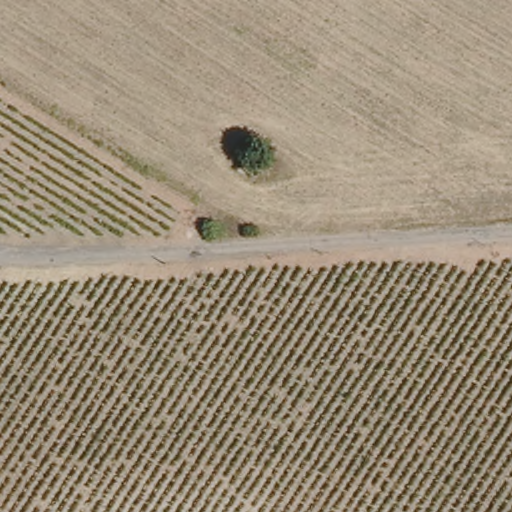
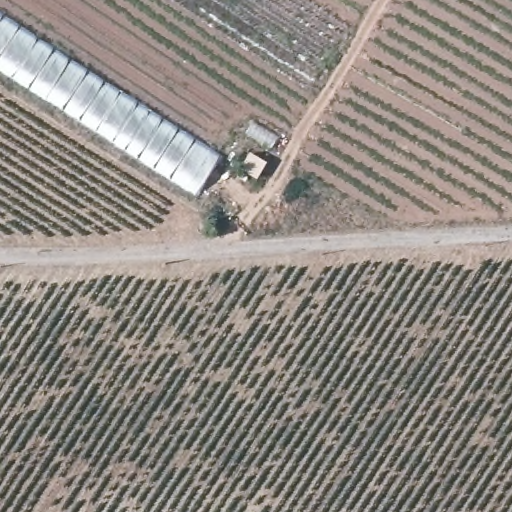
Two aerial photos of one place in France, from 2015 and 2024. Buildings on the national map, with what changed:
new [(0,71),(0,19),(217,159),(193,196),(0,71)]
unchanged [(258,161),(250,177),(237,169),(247,154),(258,161)]

